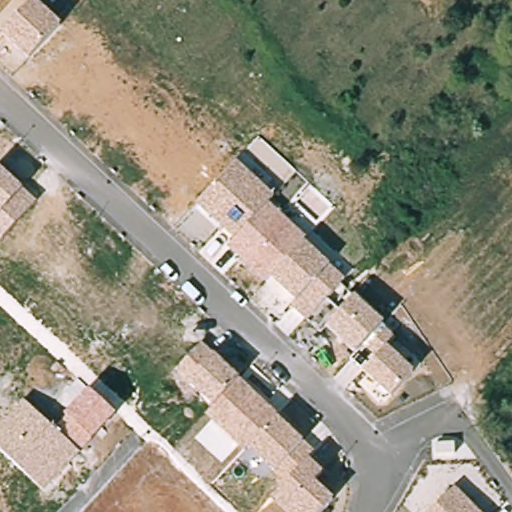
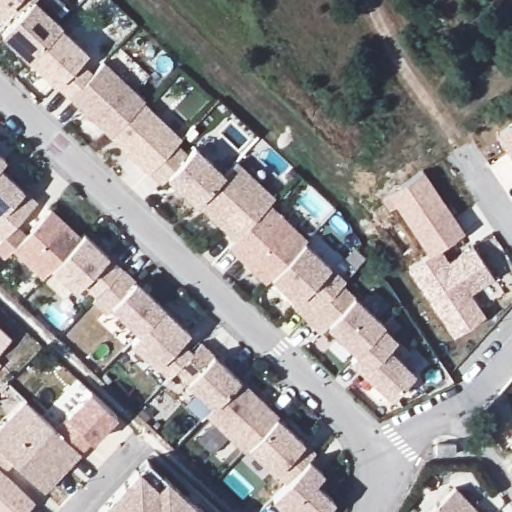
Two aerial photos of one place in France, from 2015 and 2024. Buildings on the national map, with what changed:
unchanged [(60,25),(30,59),(3,35),(36,1),(60,25)]
new [(89,51),(81,60),(94,70),(69,96),(56,84),(30,59),(60,25),(89,51)]
unchanged [(103,61),(143,100),(109,135),(69,96),(103,61)]
new [(182,138),(177,144),(187,154),(196,145),(225,172),(200,204),(169,175),(161,184),(149,173),(109,135),(143,100),(182,138)]
new [(512,124),(512,159),(496,135),(512,124)]
new [(5,156),(0,162),(0,152),(5,156)]
unchanged [(270,202),(308,239),(304,240),(331,264),(346,282),(341,286),(355,295),(381,321),(398,342),(390,346),(414,373),(392,398),(366,372),(377,355),(367,345),(355,356),(327,328),(342,311),(326,303),(307,321),(292,306),(294,300),(272,276),(265,285),(228,248),(235,240),(200,204),(235,160),(274,195),(270,202)]
unchanged [(35,202),(3,239),(0,237),(0,167),(21,187),(35,202)]
new [(486,316),(454,337),(408,270),(429,255),(388,195),(423,170),(465,231),(441,248),(449,261),(473,245),(494,277),(471,294),(486,316)]
new [(26,235),(51,208),(80,237),(84,233),(108,256),(135,281),(189,330),(181,340),(194,352),(176,370),(168,379),(156,366),(129,342),(138,334),(111,308),(105,315),(91,301),(95,297),(82,285),(76,291),(52,269),(43,277),(13,251),(6,259),(0,254),(0,241),(3,239),(16,224),(26,235)]
new [(12,338),(0,350),(0,327),(12,338)]
unchanged [(216,355),(238,376),(277,416),(300,437),(313,455),(306,458),(325,472),(316,483),(333,500),(323,512),(287,512),(274,500),(286,483),(275,473),(248,448),(245,455),(208,415),(213,406),(189,384),(176,370),(202,343),(216,355)]
unchanged [(53,428),(68,413),(89,390),(115,416),(90,441),(44,493),(0,451),(0,429),(23,403),(53,428)]
new [(5,472),(35,501),(25,512),(0,512),(0,451),(14,464),(5,472)]
unchanged [(154,462),(204,510),(206,509),(209,512),(107,512),(154,462)]
unchanged [(455,489),(479,512),(431,512),(455,489)]

